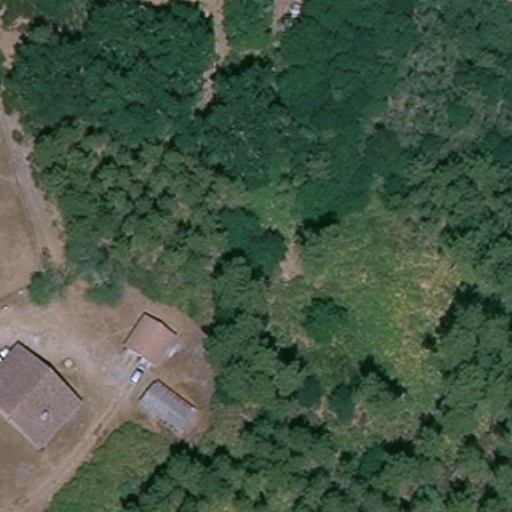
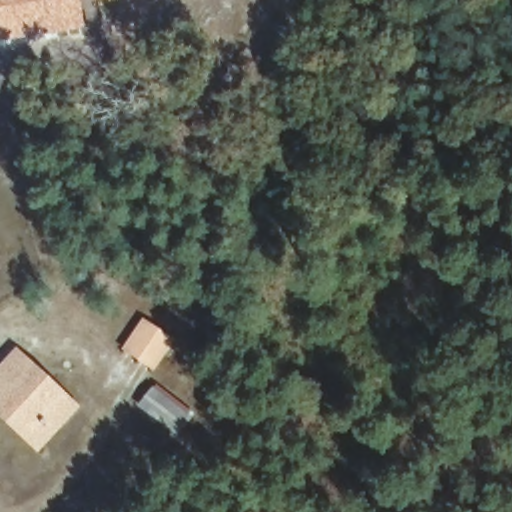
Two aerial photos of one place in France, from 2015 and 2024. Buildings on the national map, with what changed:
new [(0,43),(0,0),(81,0),(86,33),(0,43)]
new [(94,0),(104,0),(95,1),(94,0)]
unchanged [(170,344),(146,368),(122,344),(145,320),(170,344)]
unchanged [(0,372),(20,353),(75,407),(59,423),(35,447),(0,413),(0,372)]
unchanged [(189,417),(176,432),(164,423),(145,405),(158,391),(180,409),(189,417)]

